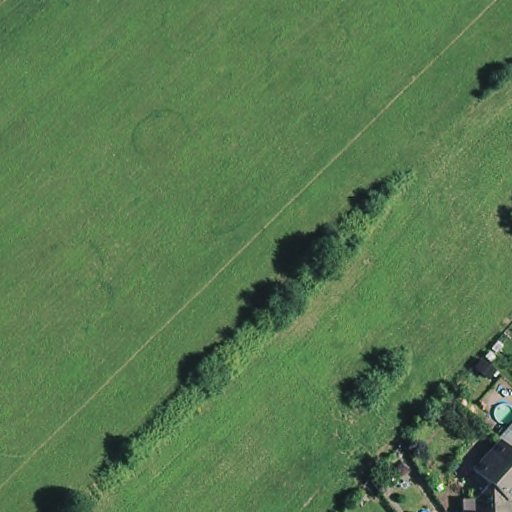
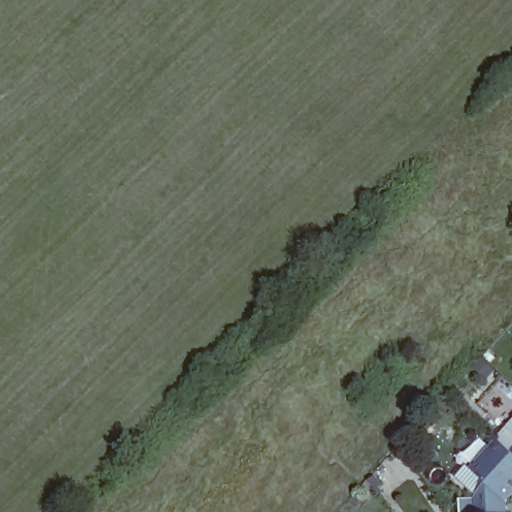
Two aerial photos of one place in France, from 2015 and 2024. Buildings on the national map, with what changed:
unchanged [(490,485),(476,471),(503,442),(512,451),(512,495),(507,500),(507,512),(478,512),(477,500),(490,485)]

